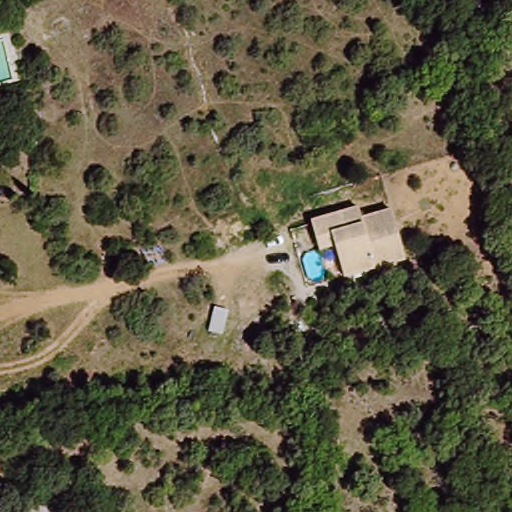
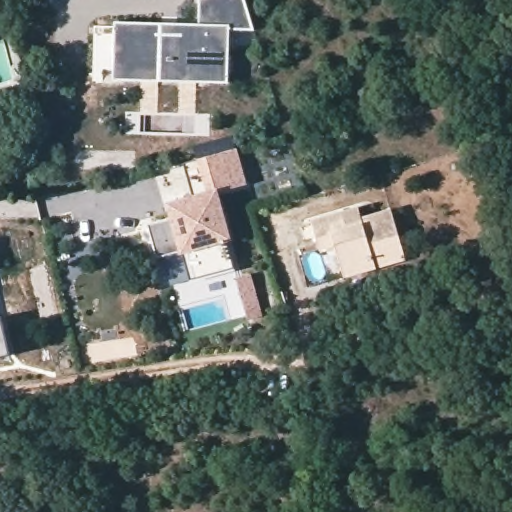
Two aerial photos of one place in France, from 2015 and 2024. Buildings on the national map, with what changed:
new [(200,0),(246,0),(256,30),(230,28),(228,81),(115,78),(116,23),(200,24),(200,0)]
new [(247,183),(219,191),(232,238),(226,239),(234,269),(191,280),(182,249),(158,257),(147,223),(170,217),(166,201),(192,194),(183,162),(237,147),(247,183)]
unchanged [(408,258),(347,277),(332,249),(319,252),(309,223),(359,208),(363,217),(390,211),(408,258)]
new [(1,318),(9,354),(0,357),(0,318),(1,318)]

